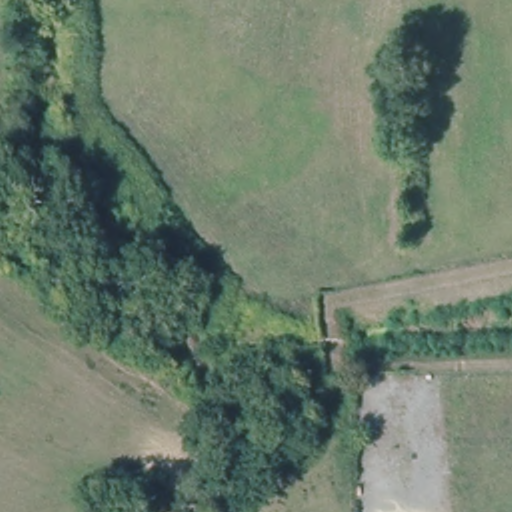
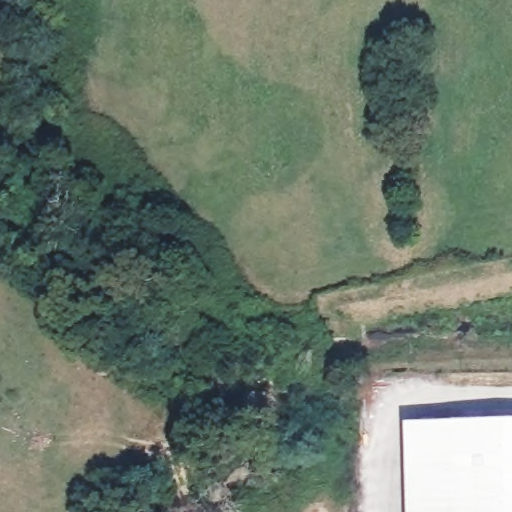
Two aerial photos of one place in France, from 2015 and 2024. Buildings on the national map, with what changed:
new [(408,425),(512,422),(512,512),(410,512),(408,425)]

